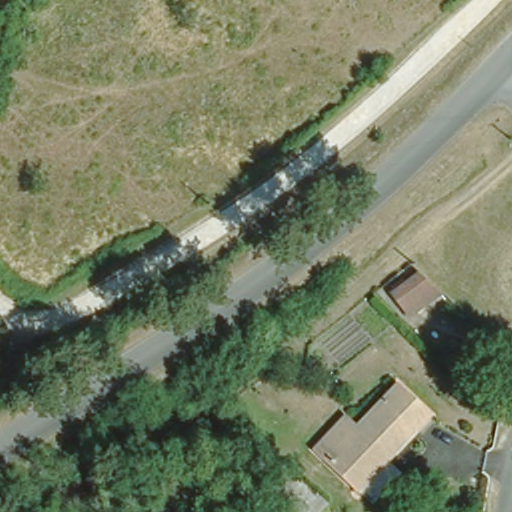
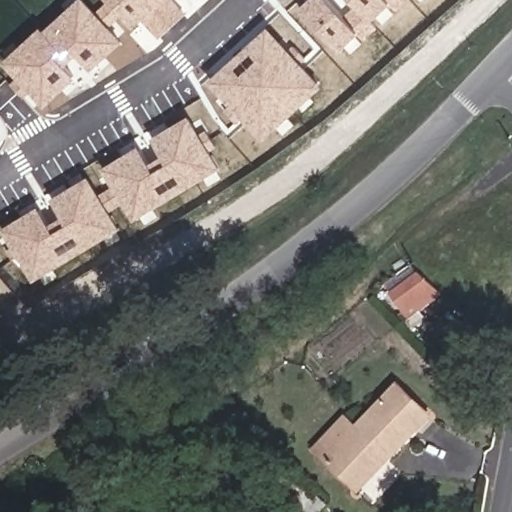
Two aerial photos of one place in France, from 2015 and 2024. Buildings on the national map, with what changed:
new [(4,63),(41,28),(45,31),(79,0),(86,0),(97,13),(109,2),(108,0),(175,0),(187,14),(161,38),(145,19),(134,29),(123,17),(111,28),(125,42),(93,71),(78,56),(67,67),(76,78),(45,108),(31,93),(24,99),(10,85),(18,79),(4,63)]
new [(329,0),(345,18),(356,7),(350,0),(410,0),(397,12),(391,5),(374,22),(378,28),(365,41),(360,35),(340,53),(301,9),(310,0),(329,0)]
new [(289,50),(295,46),(307,60),(302,65),(324,88),(262,142),(243,119),(237,124),(225,111),(230,106),(208,83),(268,27),(289,50)]
new [(1,116),(0,117),(0,115),(1,116)]
new [(200,135),(207,131),(218,148),(211,151),(221,168),(135,222),(124,205),(111,213),(121,230),(34,282),(19,257),(13,260),(8,252),(13,249),(2,230),(39,207),(49,226),(62,218),(52,200),(89,177),(101,196),(114,188),(103,169),(140,146),(150,165),(162,157),(152,140),(189,116),(200,135)]
unchanged [(407,307),(388,285),(408,268),(428,289),(407,307)]
unchanged [(373,467),(358,487),(331,466),(321,460),(346,421),(357,428),(388,382),(424,405),(390,456),(380,471),(373,467)]
unchanged [(304,503),(318,512),(297,512),(304,503)]

